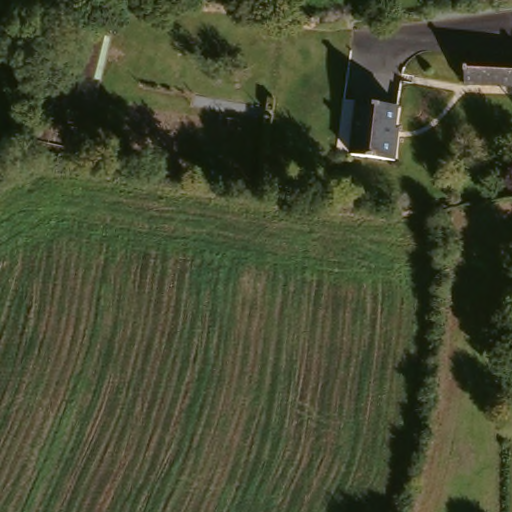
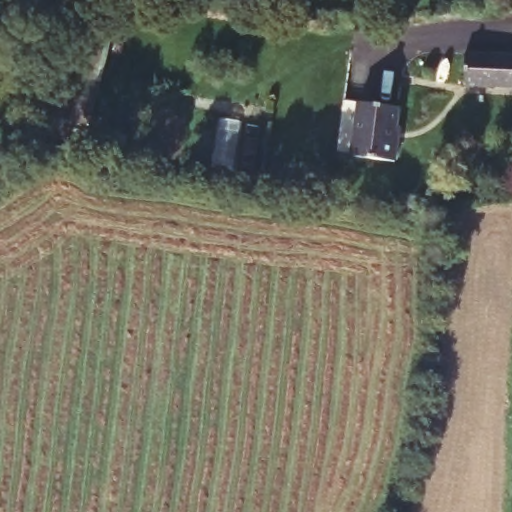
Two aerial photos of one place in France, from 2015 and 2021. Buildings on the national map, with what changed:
unchanged [(466,76),(466,50),(498,51),(497,84),(465,84),(466,76)]
unchanged [(512,52),(512,85),(497,84),(498,51),(512,52)]
unchanged [(394,138),(400,138),(400,163),(356,161),(357,104),(396,106),(394,138)]
demolished [(242,119),(234,171),(211,169),(219,116),(242,119)]

